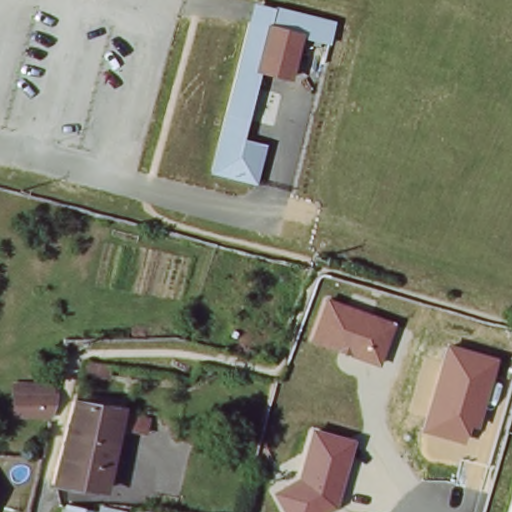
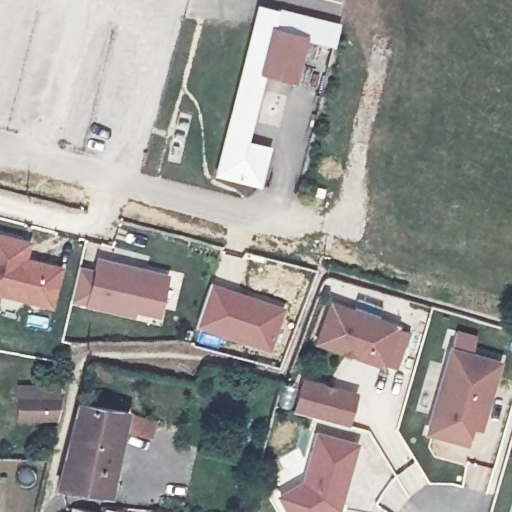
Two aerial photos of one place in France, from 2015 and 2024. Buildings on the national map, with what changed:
unchanged [(334,47),(307,40),(296,83),(265,75),(249,141),(272,147),(262,188),(215,176),(258,3),(340,22),(334,47)]
new [(0,295),(0,234),(32,241),(27,258),(62,267),(52,307),(0,295)]
new [(86,305),(70,302),(78,265),(93,268),(97,256),(170,273),(160,316),(135,311),(135,316),(86,305)]
new [(210,282),(288,308),(273,352),(196,327),(210,282)]
unchanged [(384,368),(315,345),(331,300),(400,324),(384,368)]
unchanged [(483,432),(474,429),(469,445),(428,433),(451,346),(501,359),(483,432)]
unchanged [(117,373),(88,366),(92,355),(97,355),(120,360),(117,373)]
new [(365,396),(356,428),(302,413),(311,381),(365,396)]
unchanged [(17,416),(18,393),(54,391),(48,415),(17,416)]
unchanged [(112,492),(83,486),(82,491),(60,486),(82,403),(83,401),(127,410),(127,417),(112,492)]
unchanged [(133,433),(136,420),(160,425),(157,436),(157,439),(133,433)]
unchanged [(341,509),(337,512),(287,512),(277,493),(301,482),(316,430),(362,442),(341,509)]

